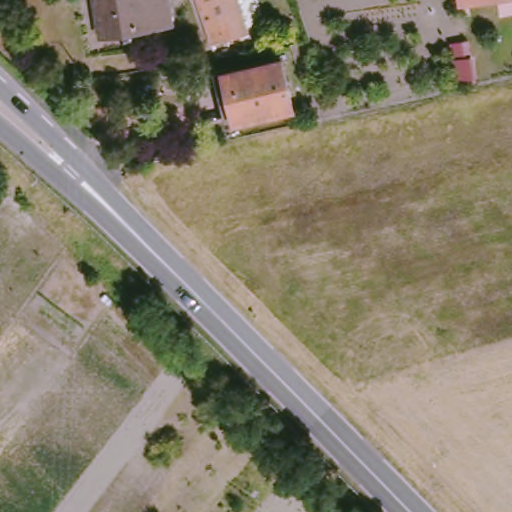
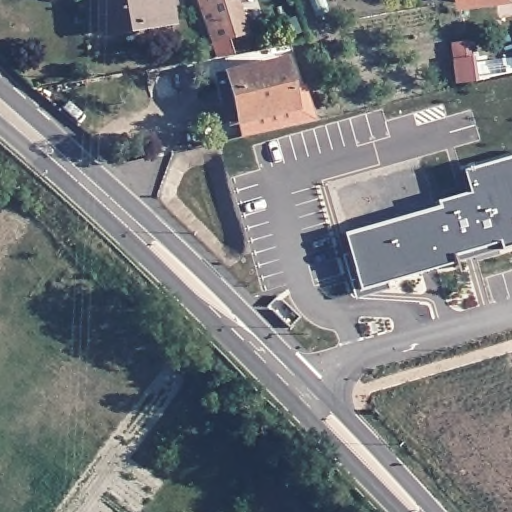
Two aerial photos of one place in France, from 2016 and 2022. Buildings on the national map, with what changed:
unchanged [(140,24),(102,29),(97,0),(168,0),(172,23),(141,28),(140,24)]
unchanged [(238,29),(207,39),(193,0),(233,0),(238,16),(234,19),(238,29)]
unchanged [(464,0),(509,0),(465,5),(464,0)]
unchanged [(232,121),(222,72),(277,61),(288,111),(232,121)]
new [(432,202),(465,194),(460,172),(512,161),(512,250),(492,254),(491,248),(446,257),(447,264),(350,285),(337,227),(435,207),(432,202)]

